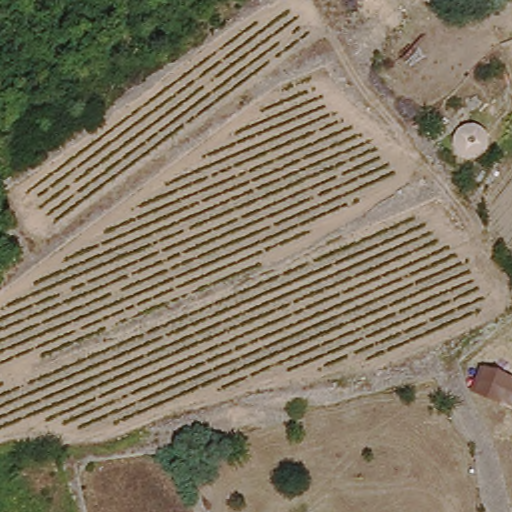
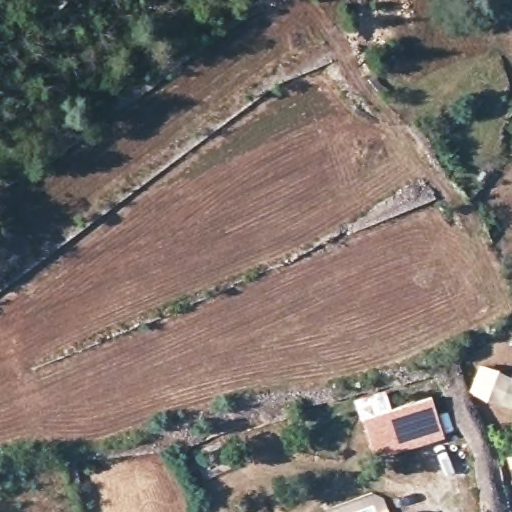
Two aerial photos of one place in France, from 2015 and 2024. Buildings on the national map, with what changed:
unchanged [(480,366),(512,379),(512,407),(472,392),(480,366)]
new [(432,397),(444,433),(445,436),(375,458),(363,419),(432,397)]

